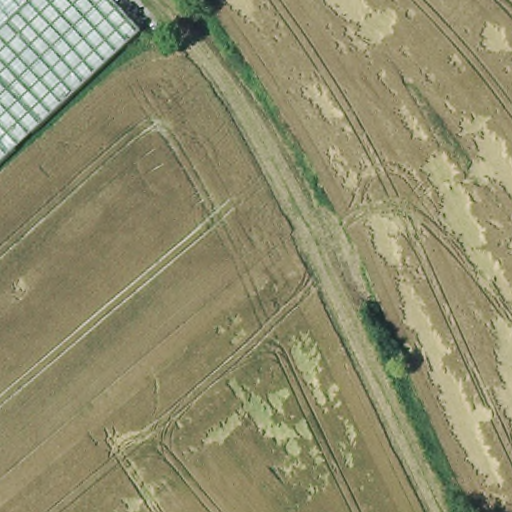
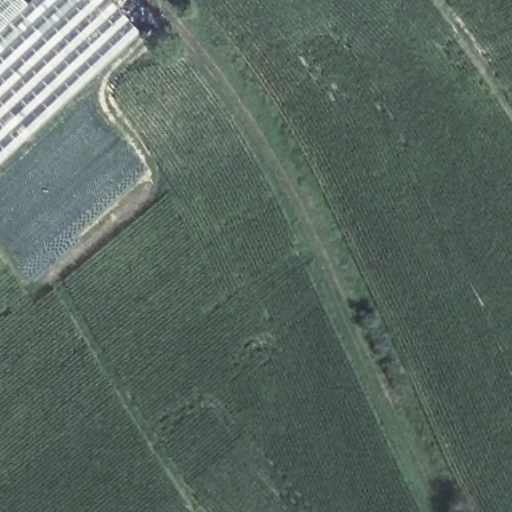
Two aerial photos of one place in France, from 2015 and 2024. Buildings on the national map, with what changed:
unchanged [(28,2),(0,29),(0,0),(27,0),(28,2)]
unchanged [(31,0),(117,0),(143,27),(0,165),(0,29),(28,2),(31,0)]

